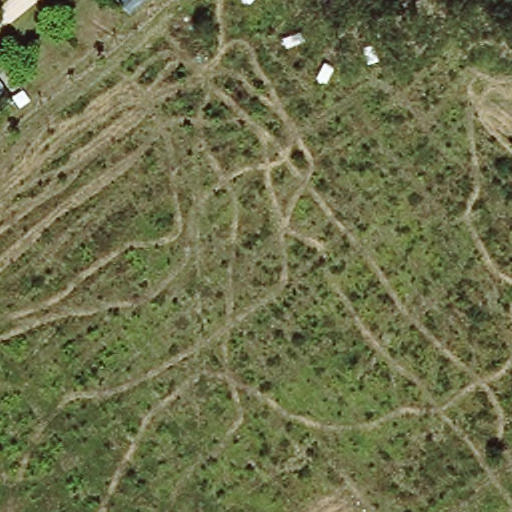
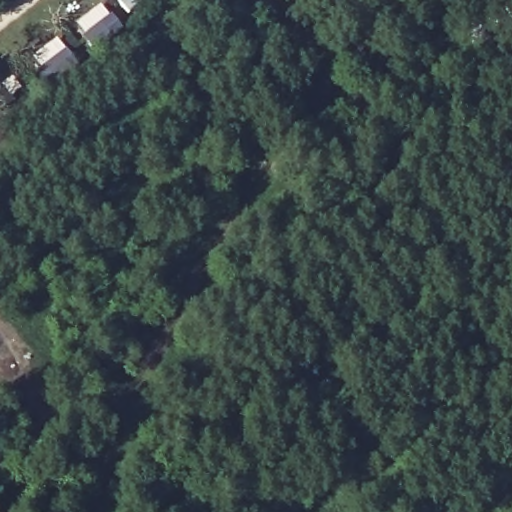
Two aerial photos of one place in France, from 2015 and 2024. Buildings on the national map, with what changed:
[]

